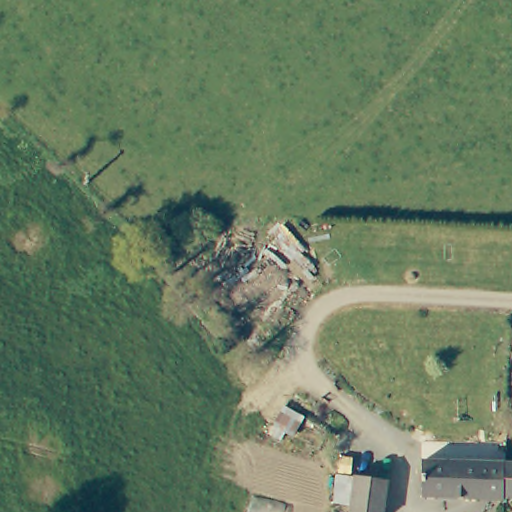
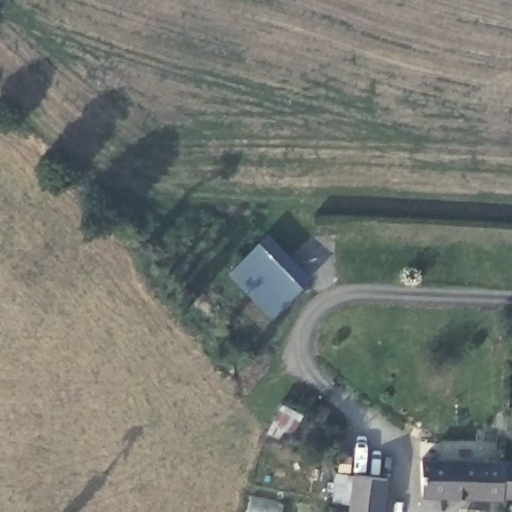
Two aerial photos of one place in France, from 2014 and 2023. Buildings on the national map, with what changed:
new [(267,232),(311,278),(272,321),(227,275),(267,232)]
unchanged [(345,479),(345,457),(380,458),(383,462),(383,512),(355,512),(356,479),(345,479)]
unchanged [(412,460),(500,461),(500,498),(412,495),(412,460)]
unchanged [(500,461),(512,462),(512,498),(500,498),(500,461)]

